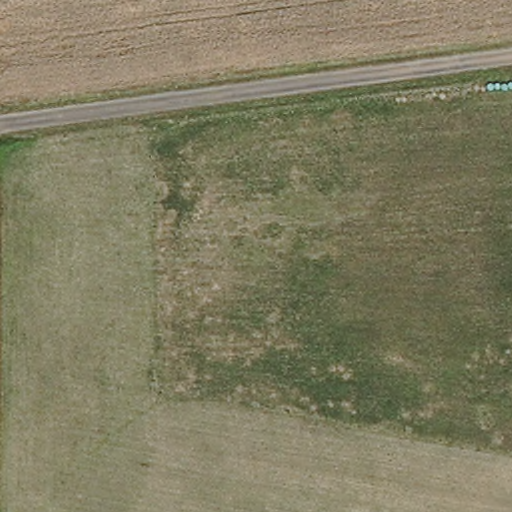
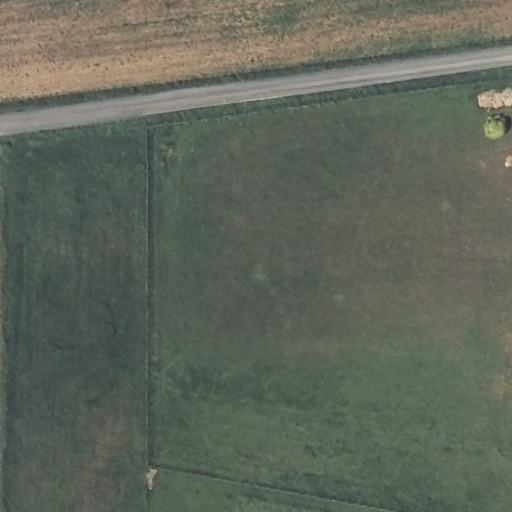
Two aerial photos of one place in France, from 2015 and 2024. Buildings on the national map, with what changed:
[]

